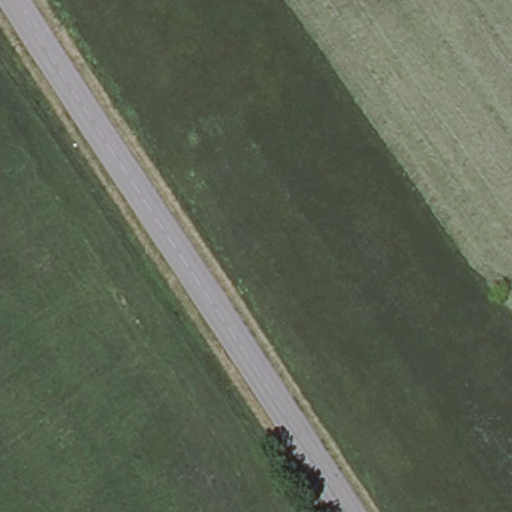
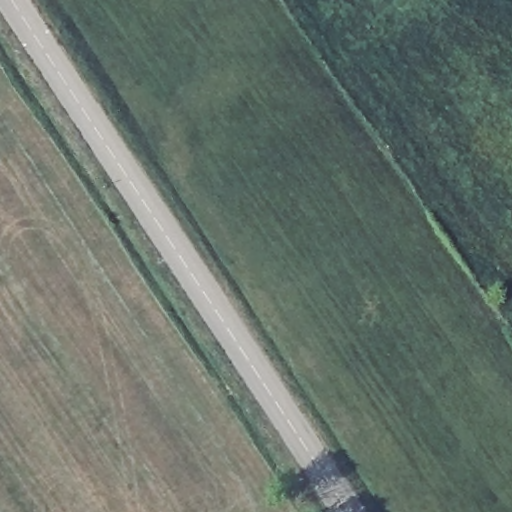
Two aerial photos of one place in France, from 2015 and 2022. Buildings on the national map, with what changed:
[]

